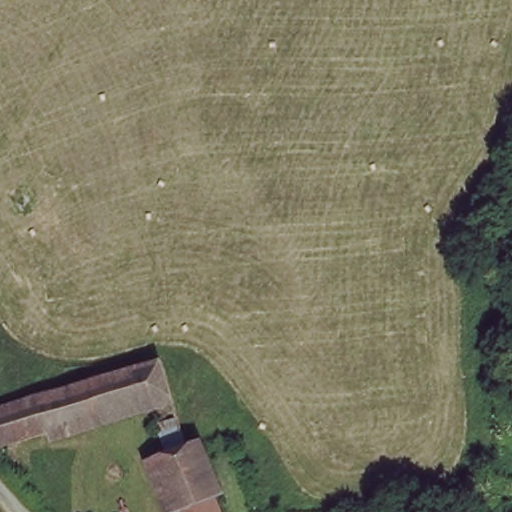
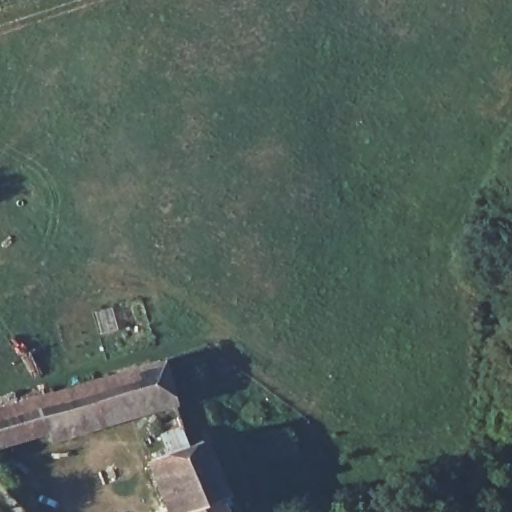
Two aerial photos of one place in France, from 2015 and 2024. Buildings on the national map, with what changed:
unchanged [(165,371),(174,395),(0,447),(0,420),(165,371)]
unchanged [(181,457),(195,453),(220,512),(174,512),(155,466),(181,457)]

